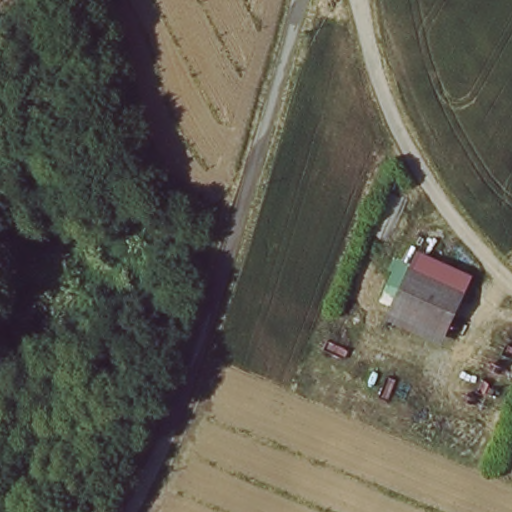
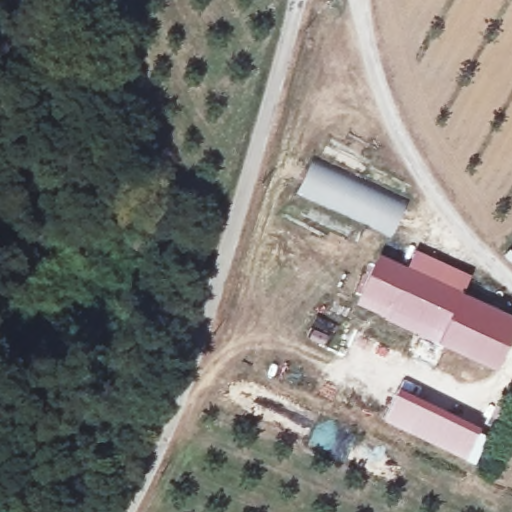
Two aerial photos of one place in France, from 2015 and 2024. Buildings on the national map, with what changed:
new [(297,192),(312,158),(406,201),(390,235),(297,192)]
unchanged [(467,272),(436,338),(381,317),(411,247),(467,272)]
new [(383,313),(355,302),(380,253),(405,264),(383,313)]
new [(512,315),(512,332),(495,364),(436,338),(459,290),(512,315)]
new [(464,457),(385,419),(398,394),(478,433),(464,457)]

